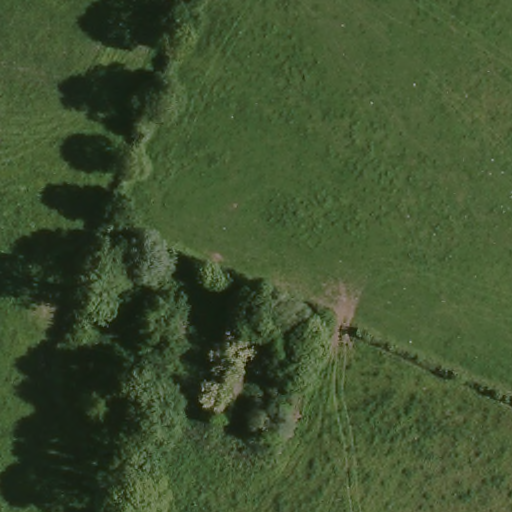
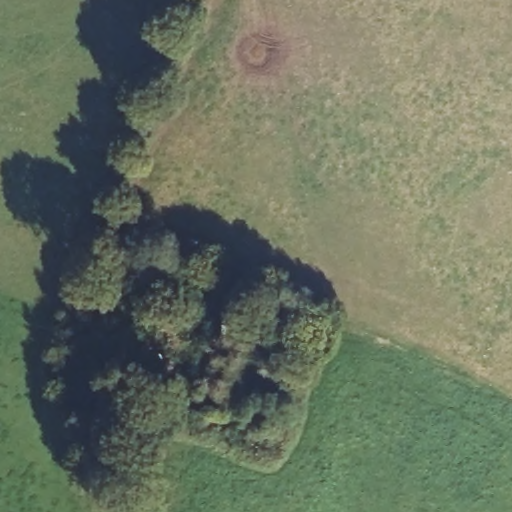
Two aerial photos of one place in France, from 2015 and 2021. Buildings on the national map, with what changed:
unchanged [(169,236),(153,278),(129,272),(143,226),(169,236)]
unchanged [(278,455),(253,446),(269,404),(295,412),(278,455)]

